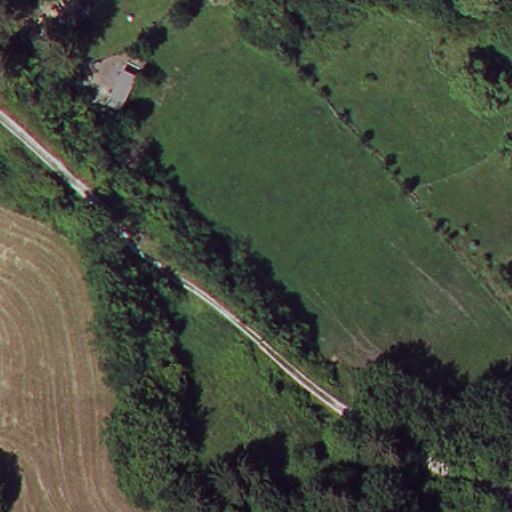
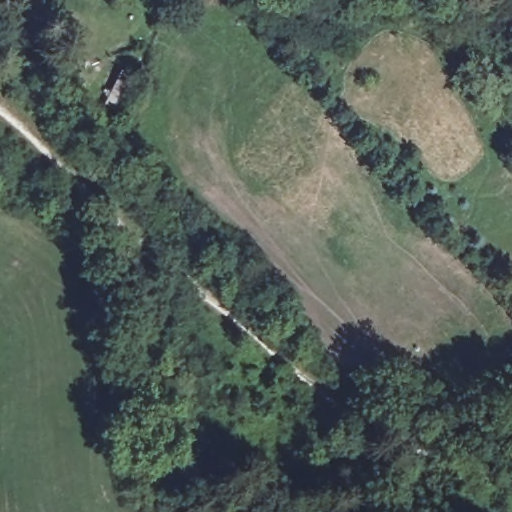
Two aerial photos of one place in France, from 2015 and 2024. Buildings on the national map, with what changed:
[]

